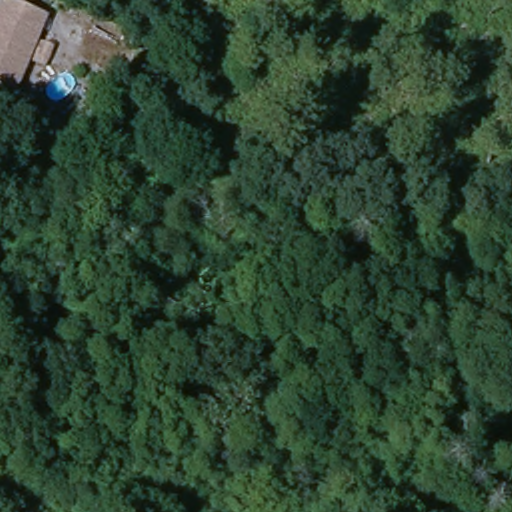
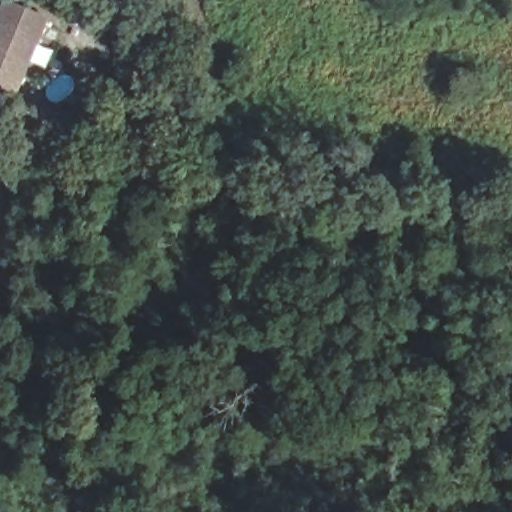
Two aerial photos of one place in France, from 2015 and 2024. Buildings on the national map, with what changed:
unchanged [(0,82),(0,4),(2,0),(7,0),(43,15),(12,86),(0,82)]

